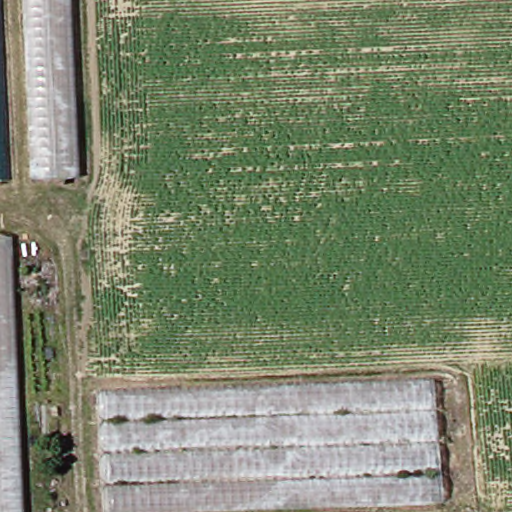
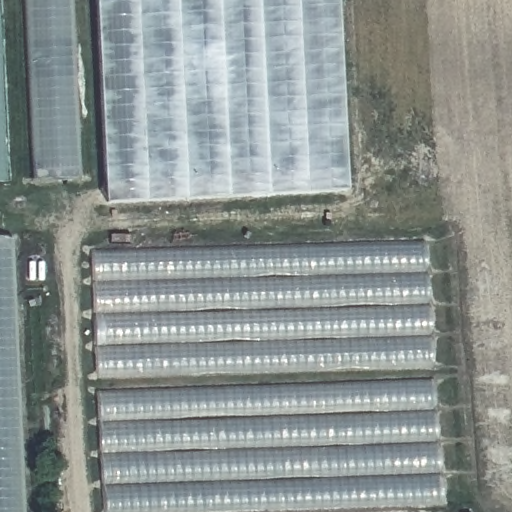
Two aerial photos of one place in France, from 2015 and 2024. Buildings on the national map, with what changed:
unchanged [(73,0),(80,174),(35,177),(27,0),(73,0)]
new [(105,203),(95,0),(337,0),(347,192),(105,203)]
unchanged [(0,154),(1,181),(0,181),(0,154)]
unchanged [(25,512),(0,512),(0,237),(14,236),(25,512)]
new [(92,252),(426,242),(443,505),(236,512),(104,512),(92,252)]

